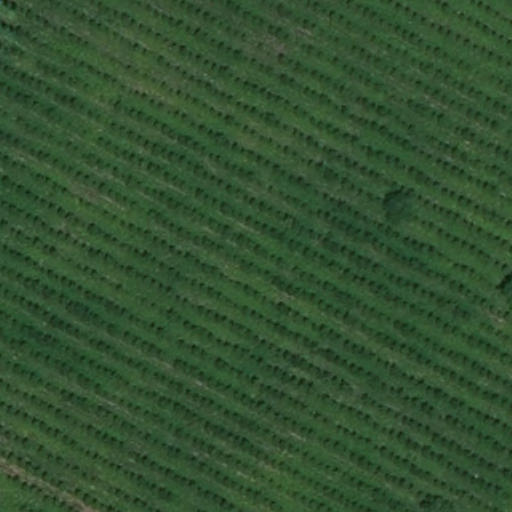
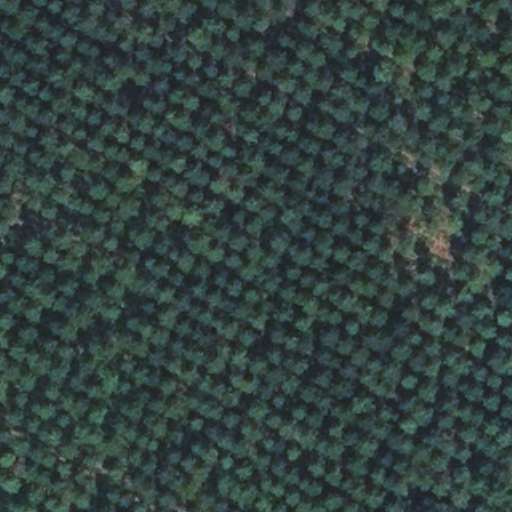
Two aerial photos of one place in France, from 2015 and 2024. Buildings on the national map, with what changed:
[]

